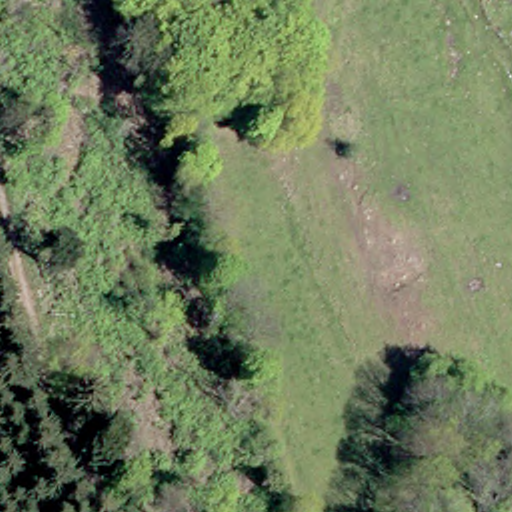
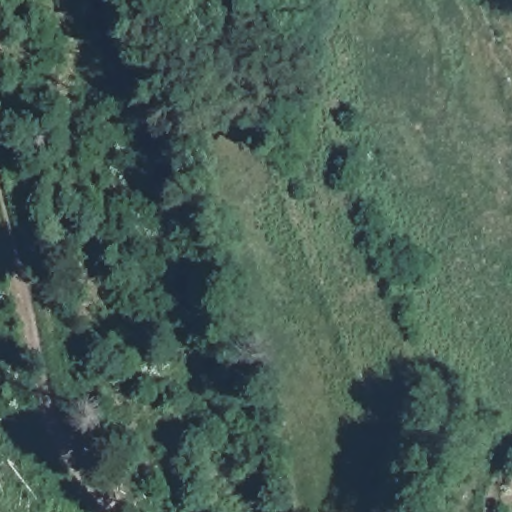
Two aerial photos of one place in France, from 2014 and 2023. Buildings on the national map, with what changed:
[]

